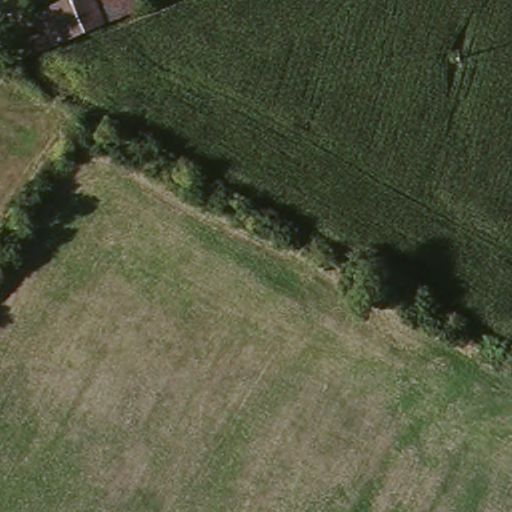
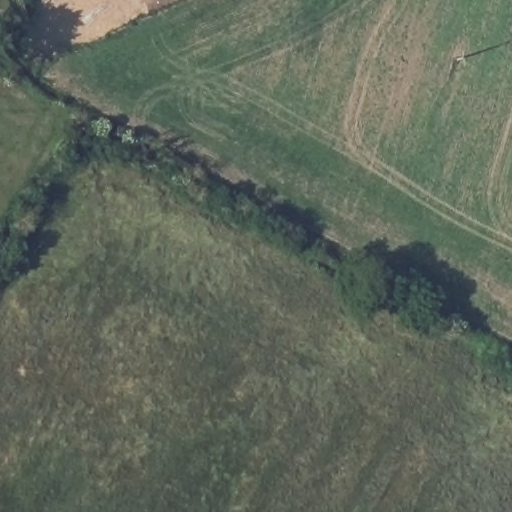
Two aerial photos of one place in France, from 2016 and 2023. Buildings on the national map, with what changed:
unchanged [(44,26),(37,10),(61,0),(139,0),(141,6),(92,26),(10,59),(4,42),(44,26)]

